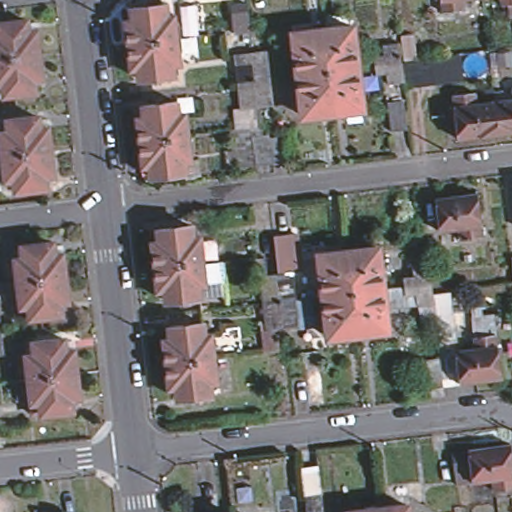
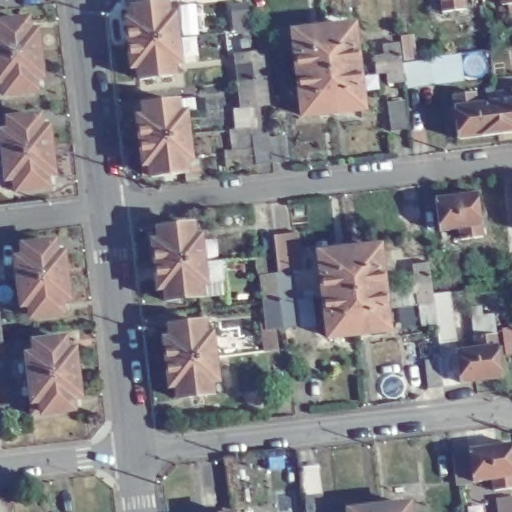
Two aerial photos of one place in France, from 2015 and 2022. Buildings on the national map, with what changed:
unchanged [(442,15),(440,2),(440,0),(461,0),(462,12),(442,15)]
unchanged [(500,7),(499,0),(512,0),(512,6),(500,7)]
unchanged [(234,35),(230,8),(241,7),(247,6),(250,34),(244,34),(234,35)]
unchanged [(169,65),(171,77),(137,81),(136,70),(128,70),(123,25),(131,24),(129,11),(162,7),(164,20),(171,20),(177,64),(169,65)]
unchanged [(0,26),(24,24),(25,35),(34,34),(38,80),(31,81),(32,94),(0,97),(0,26)]
unchanged [(290,42),(350,35),(354,74),(359,115),(300,121),(295,80),(290,42)]
unchanged [(371,63),(381,62),(381,52),(395,51),(397,70),(399,90),(385,90),(384,79),(372,80),(372,72),(371,63)]
unchanged [(252,112),(237,114),(231,60),(247,58),(263,56),(266,84),(269,110),(252,112)]
unchanged [(511,95),(512,95),(512,107),(511,95)]
unchanged [(452,115),(451,102),(472,100),(474,111),(512,107),(512,139),(456,145),(452,115)]
unchanged [(149,177),(147,166),(140,167),(135,121),(142,120),(141,107),(174,104),(176,116),(182,115),(188,162),(181,162),(182,174),(149,177)]
unchanged [(16,198),(15,186),(7,187),(2,140),(9,140),(7,129),(41,125),(42,136),(48,135),(54,182),(47,182),(48,195),(16,198)]
unchanged [(283,162),(267,164),(265,137),(280,135),(283,162)]
unchanged [(452,230),(432,232),(429,200),(471,195),(474,227),(475,239),(453,241),(452,230)]
unchanged [(164,303),(162,291),(155,291),(150,245),(157,245),(156,233),(189,230),(190,241),(197,240),(203,286),(196,287),(197,299),(164,303)]
unchanged [(285,332),(270,333),(263,280),(279,278),(275,239),(296,237),(300,276),(294,276),(296,302),(300,331),(285,332)]
unchanged [(29,306),(22,307),(16,262),(23,261),(22,249),(54,245),(56,257),(63,256),(69,302),(62,303),(63,315),(30,320),(29,306)]
unchanged [(390,338),(331,346),(327,308),(322,266),(381,258),(386,301),(390,338)]
unchanged [(501,259),(512,258),(512,287),(504,288),(502,270),(501,259)]
unchanged [(419,315),(391,318),(389,300),(407,298),(406,287),(415,286),(414,276),(429,274),(432,295),(434,313),(437,335),(422,337),(419,315)]
unchanged [(207,385),(209,396),(175,400),(174,388),(167,390),(161,343),(169,342),(167,331),(201,326),(202,338),(209,337),(216,384),(207,385)]
unchanged [(433,363),(465,360),(464,356),(484,353),(482,342),(504,340),(506,351),(510,383),(468,387),(436,391),(433,363)]
unchanged [(31,411),(34,410),(28,363),(34,363),(34,352),(67,349),(67,360),(75,360),(80,405),(73,406),(74,418),(41,422),(32,423),(31,411)]
unchanged [(472,497),(471,487),(467,455),(509,451),(512,483),(493,485),(494,495),(472,497)]
unchanged [(319,500),(320,512),(302,512),(301,502),(319,500)]
unchanged [(403,512),(383,512),(403,510),(403,512)]

